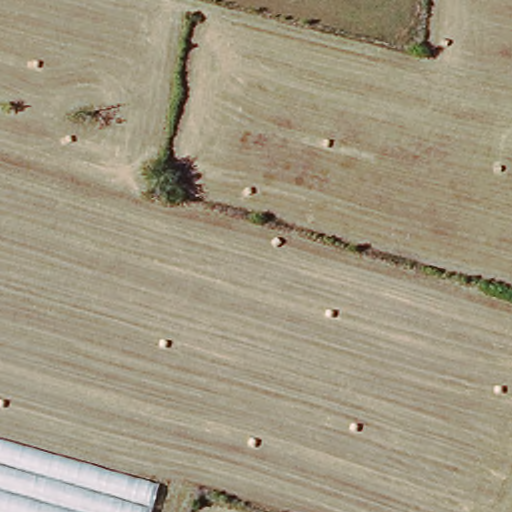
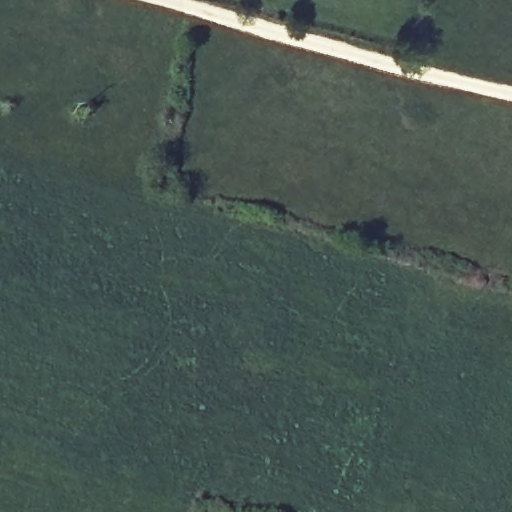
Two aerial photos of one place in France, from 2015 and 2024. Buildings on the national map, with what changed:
demolished [(0,440),(158,484),(151,512),(0,512),(0,440)]

